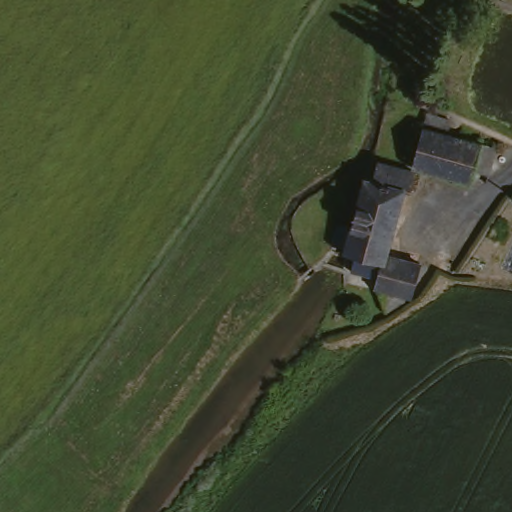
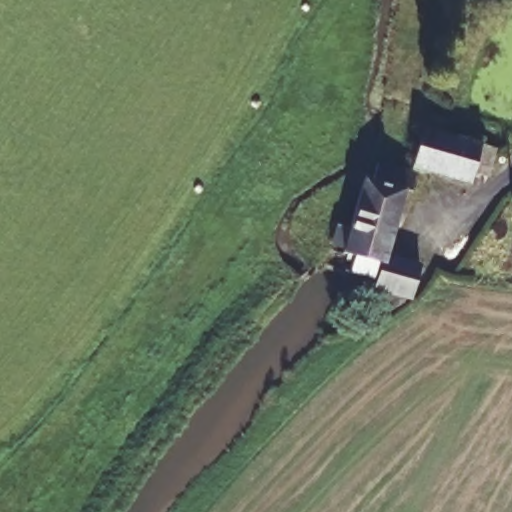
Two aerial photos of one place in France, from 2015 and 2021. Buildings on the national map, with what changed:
unchanged [(485,165),(471,160),(467,171),(411,156),(421,121),(442,127),(473,135),(478,136),(492,140),(485,165)]
unchanged [(367,180),(372,160),(379,161),(382,162),(411,171),(407,190),(402,195),(388,257),(418,265),(420,272),(411,300),(372,287),(377,272),(351,265),(350,265),(351,260),(352,256),(355,244),(353,244),(343,241),(341,241),(342,240),(345,228),(345,229),(357,231),(367,180)]

